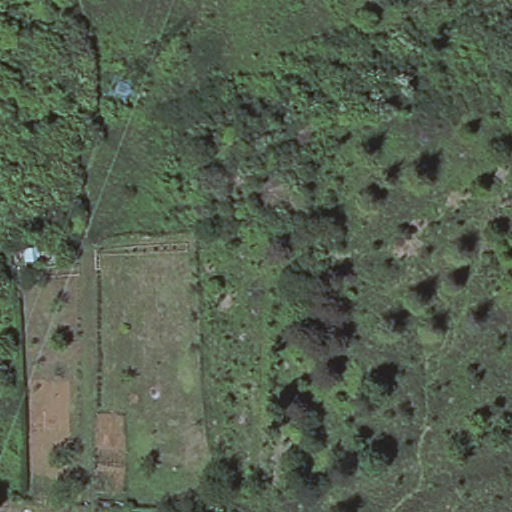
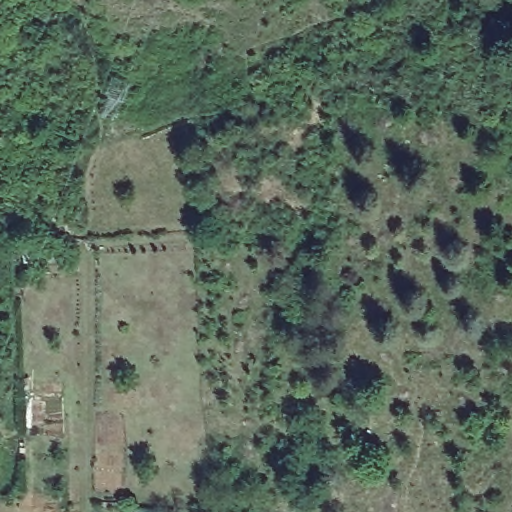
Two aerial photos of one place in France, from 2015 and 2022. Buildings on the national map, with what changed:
unchanged [(59,237),(61,248),(60,256),(57,256),(20,263),(17,244),(59,237)]

